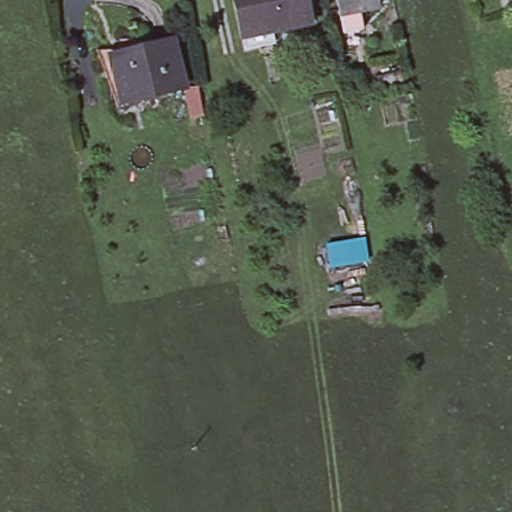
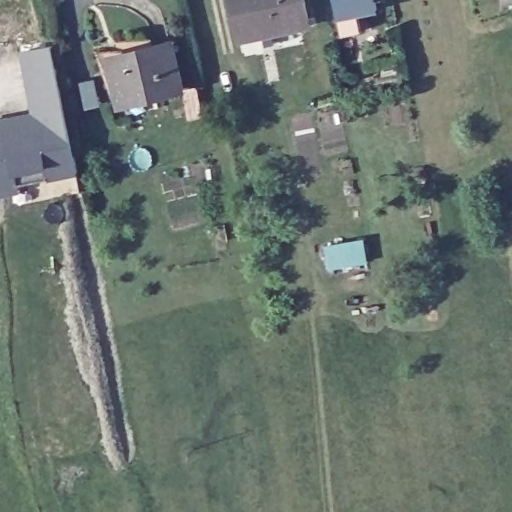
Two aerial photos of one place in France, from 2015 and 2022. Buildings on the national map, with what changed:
unchanged [(253,43),(250,30),(246,0),(302,0),(306,20),(273,26),(276,39),(253,43)]
unchanged [(341,30),(336,6),(335,0),(376,0),(377,4),(358,8),(361,26),(341,30)]
unchanged [(99,70),(93,53),(134,52),(168,42),(183,87),(121,108),(108,67),(99,70)]
new [(48,179),(48,177),(18,183),(20,192),(0,195),(0,117),(31,111),(19,51),(53,44),(79,173),(48,179)]
unchanged [(366,234),(369,256),(331,262),(327,242),(366,234)]

